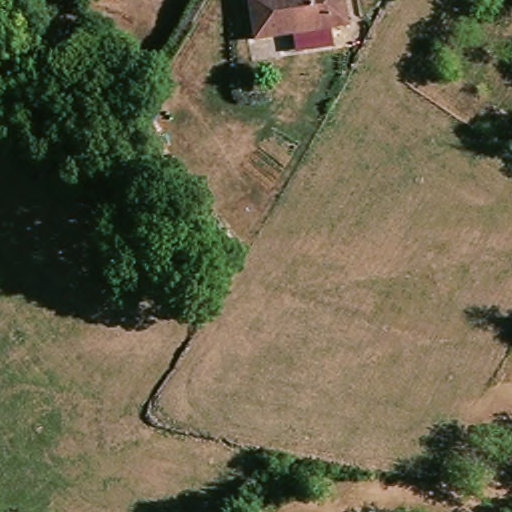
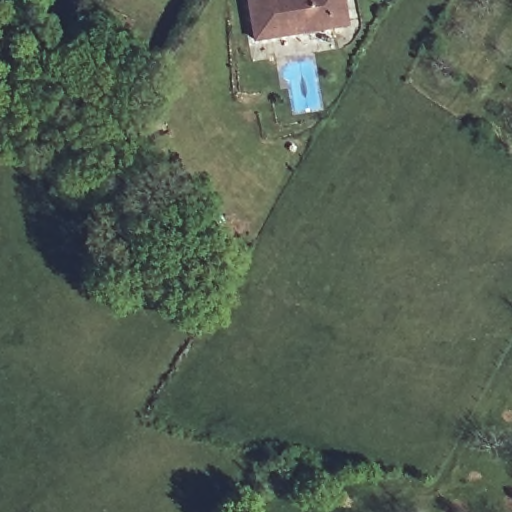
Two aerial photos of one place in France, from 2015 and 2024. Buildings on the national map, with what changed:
unchanged [(249,0),(344,0),(348,30),(254,41),(249,0)]

